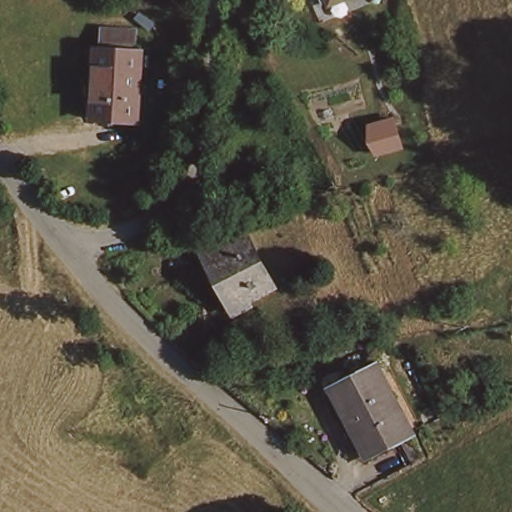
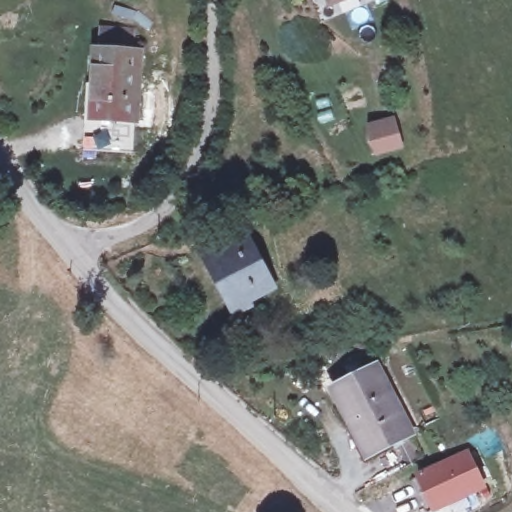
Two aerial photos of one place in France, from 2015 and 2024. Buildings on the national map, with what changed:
unchanged [(332,0),(337,0),(332,2),(332,0)]
unchanged [(125,125),(82,123),(87,55),(90,56),(91,35),(127,36),(125,57),(129,57),(125,125)]
unchanged [(402,147),(375,155),(368,122),(392,117),(402,147)]
unchanged [(202,254),(235,236),(237,242),(248,236),(275,287),(237,307),(230,310),(202,254)]
unchanged [(401,427),(373,442),(367,445),(350,414),(332,380),(368,362),(362,350),(372,346),(377,357),(411,422),(424,447),(413,452),(401,427)]
new [(469,450),(487,488),(438,512),(433,512),(416,473),(469,450)]

